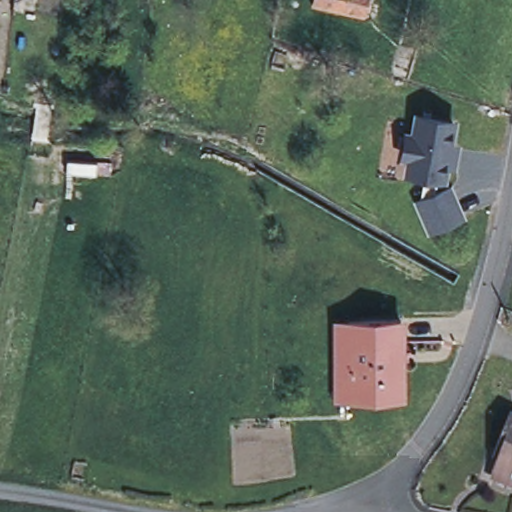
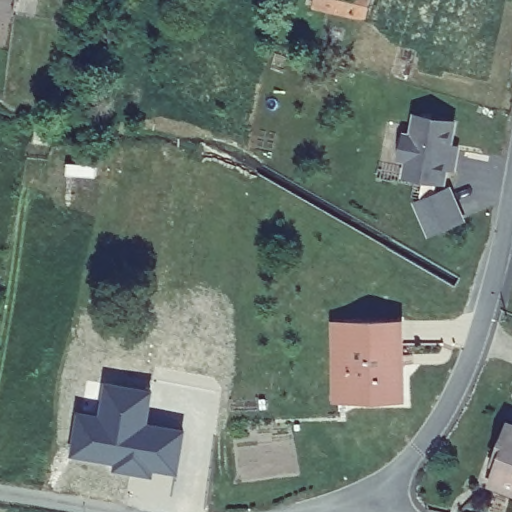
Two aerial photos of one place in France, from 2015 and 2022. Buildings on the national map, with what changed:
unchanged [(364,16),(310,4),(311,0),(369,0),(364,16)]
unchanged [(456,142),(464,145),(459,172),(451,170),(447,185),(453,186),(468,221),(431,239),(416,204),(420,201),(425,180),(405,177),(407,164),(399,161),(404,133),(412,133),(417,112),(460,120),(456,142)]
unchanged [(399,321),(401,398),(349,400),(336,400),(335,345),(335,322),(340,322),(347,322),(399,321)]
new [(152,392),(147,425),(183,432),(177,476),(152,472),(151,480),(112,475),(113,467),(68,458),(74,412),(98,416),(102,383),(152,392)]
unchanged [(492,477),(500,459),(495,457),(509,420),(512,421),(512,485),(492,477)]

